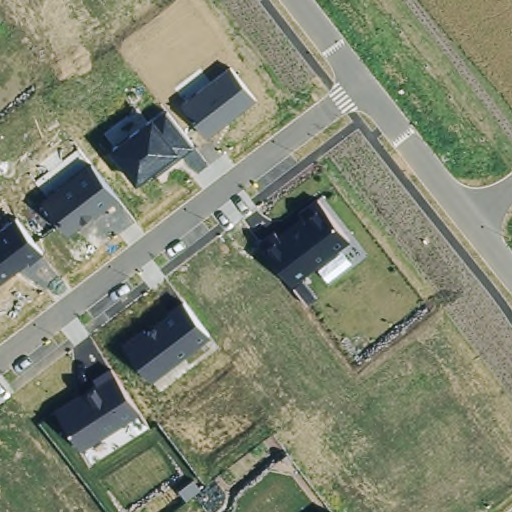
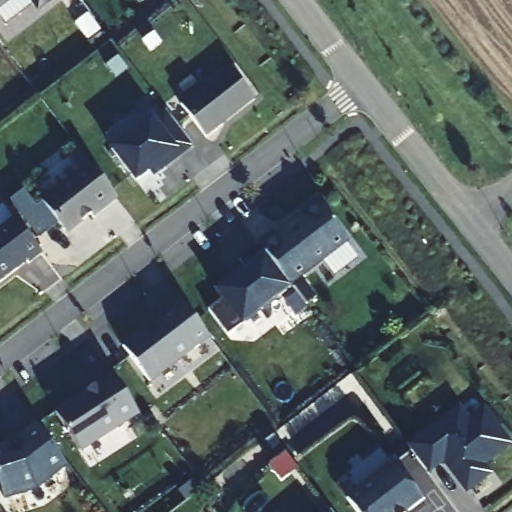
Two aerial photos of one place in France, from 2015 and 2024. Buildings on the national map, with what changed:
new [(0,7),(0,0),(10,0),(0,7)]
new [(38,10),(31,0),(51,0),(38,10)]
unchanged [(229,69),(254,97),(206,135),(183,105),(229,69)]
unchanged [(133,180),(109,150),(151,114),(157,121),(164,115),(190,146),(155,172),(149,169),(133,180)]
unchanged [(40,200),(86,165),(110,198),(68,231),(40,200)]
unchanged [(289,281),(258,241),(273,226),(278,232),(306,213),(300,207),(314,196),(344,240),(289,281)]
unchanged [(34,250),(0,276),(0,224),(10,215),(34,250)]
new [(266,251),(289,281),(294,287),(243,326),(241,323),(229,333),(211,308),(221,297),(214,290),(218,287),(217,274),(259,243),(266,251)]
unchanged [(204,338),(148,381),(117,343),(178,302),(204,338)]
unchanged [(133,417),(74,450),(54,409),(85,394),(80,382),(108,369),(133,417)]
new [(423,435),(424,436),(459,410),(468,422),(484,410),(510,445),(487,462),(479,461),(478,467),(481,468),(487,476),(467,491),(444,461),(428,473),(408,446),(423,435)]
new [(5,446),(5,448),(9,447),(20,441),(23,439),(22,437),(38,425),(67,463),(36,486),(4,496),(0,483),(0,448),(5,446)]
new [(427,505),(418,512),(357,512),(347,499),(394,462),(427,505)]
unchanged [(327,512),(320,512),(324,508),(327,512)]

